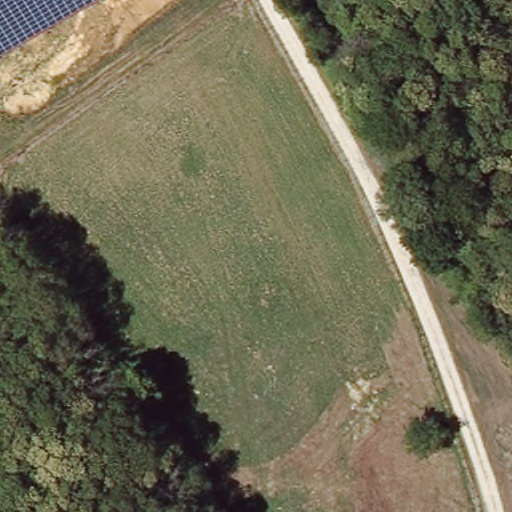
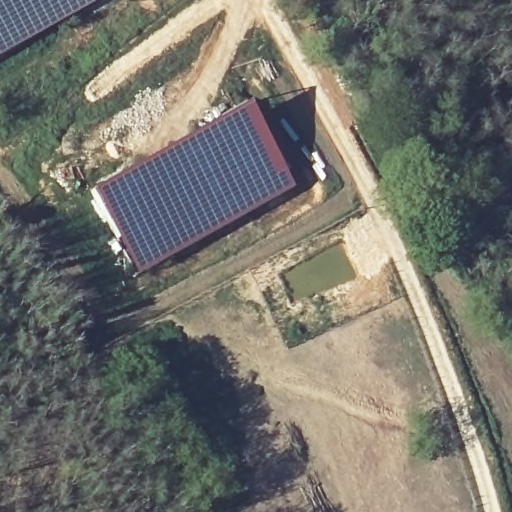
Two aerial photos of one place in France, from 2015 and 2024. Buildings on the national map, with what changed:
unchanged [(0,0),(95,0),(0,53),(0,0)]
new [(136,275),(90,193),(247,106),(292,187),(136,275)]

